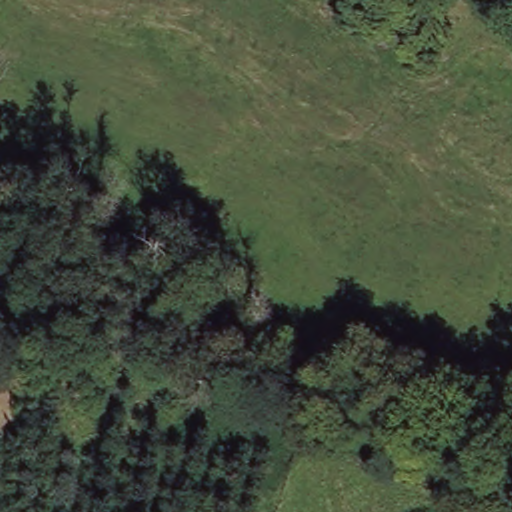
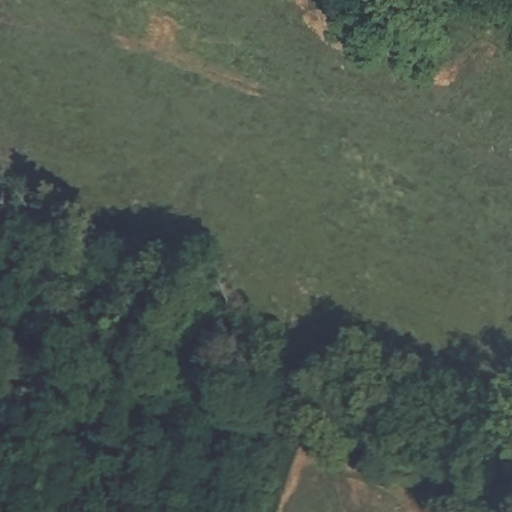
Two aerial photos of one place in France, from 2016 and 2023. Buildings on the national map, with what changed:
unchanged [(109,302),(109,303),(109,304),(108,305),(108,306),(107,306),(107,307),(106,307),(106,308),(106,309),(105,309),(104,310),(103,310),(103,311),(102,311),(101,311),(100,311),(99,311),(98,312),(98,311),(97,311),(96,311),(95,311),(94,311),(94,310),(93,310),(92,310),(91,309),(91,308),(90,308),(90,307),(89,307),(89,306),(89,305),(89,304),(89,303),(88,303),(88,302),(88,301),(88,300),(88,299),(88,298),(89,298),(89,297),(89,296),(89,295),(90,295),(90,294),(91,294),(91,293),(92,292),(93,292),(94,291),(95,291),(96,291),(96,290),(97,290),(98,290),(99,290),(100,290),(101,290),(101,291),(102,291),(103,291),(104,291),(104,292),(105,292),(106,292),(106,293),(106,294),(107,294),(108,295),(108,296),(109,296),(109,297),(109,298),(109,299),(109,300),(109,301),(109,302)]

